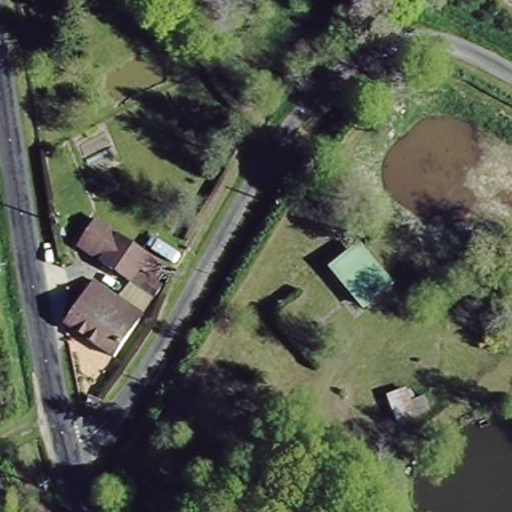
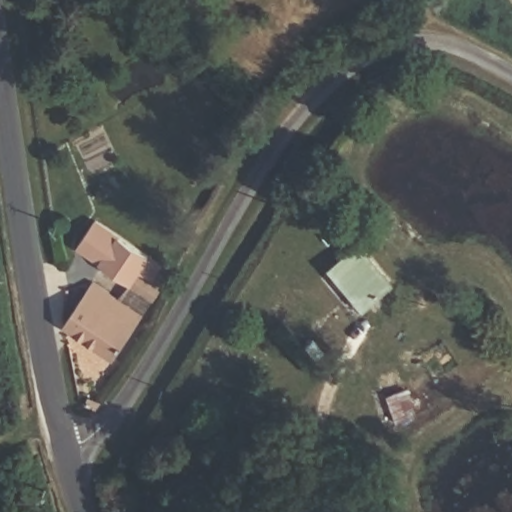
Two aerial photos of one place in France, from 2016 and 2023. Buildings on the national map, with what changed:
unchanged [(137,280),(118,270),(77,253),(93,220),(134,237),(127,251),(147,261),(137,280)]
unchanged [(364,312),(329,281),(362,243),(390,269),(397,275),(392,280),(364,312)]
unchanged [(63,327),(93,278),(145,315),(112,363),(63,327)]
unchanged [(384,397),(422,380),(431,415),(398,426),(384,397)]

